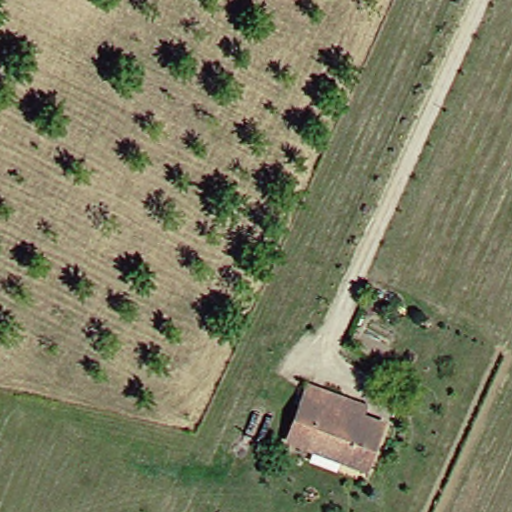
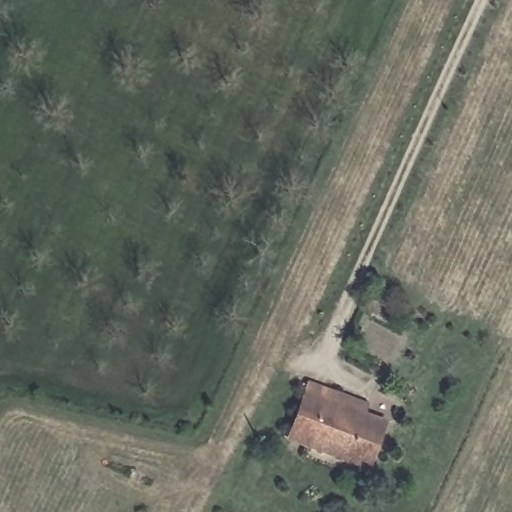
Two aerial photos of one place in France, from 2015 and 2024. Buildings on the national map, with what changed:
unchanged [(277,440),(298,383),(328,394),(357,405),(353,414),(375,422),(370,433),(357,470),(277,440)]

